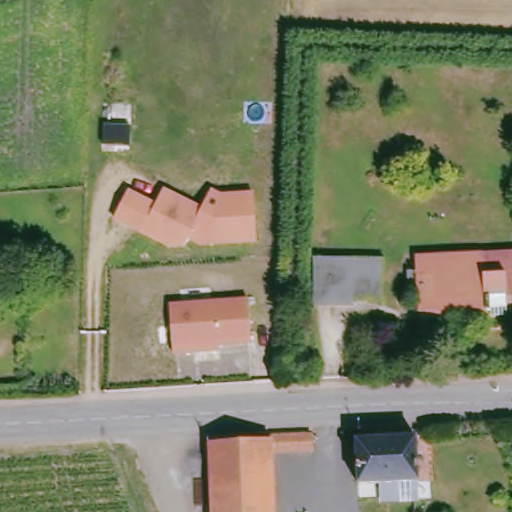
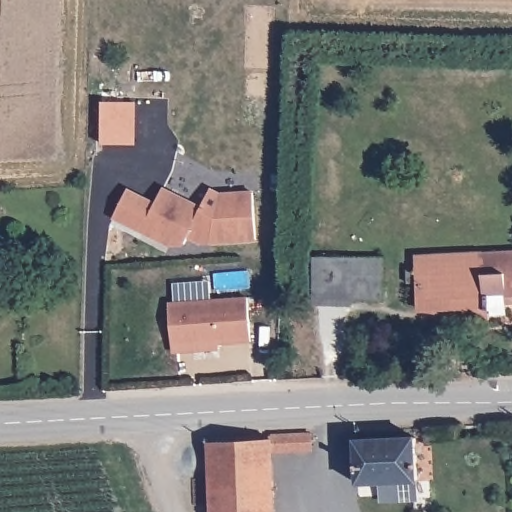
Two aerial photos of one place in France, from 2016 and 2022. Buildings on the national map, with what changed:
new [(134,103),(133,144),(100,145),(100,102),(134,103)]
unchanged [(127,186),(156,197),(162,184),(201,202),(210,185),(221,191),(251,188),(255,238),(210,241),(200,241),(186,236),(184,244),(169,244),(113,218),(127,186)]
unchanged [(411,304),(410,278),(398,279),(397,266),(410,266),(410,253),(512,251),(512,296),(496,296),(496,312),(475,313),(475,320),(411,304)]
unchanged [(379,257),(380,301),(309,301),(309,258),(379,257)]
unchanged [(168,299),(247,293),(249,340),(218,342),(218,348),(173,350),(168,299)]
unchanged [(336,440),(336,433),(339,433),(342,431),(351,430),(352,439),(336,440)]
unchanged [(276,496),(270,496),(271,512),(212,512),(209,441),(267,437),(267,434),(308,432),(308,448),(269,450),(270,482),(276,482),(276,496)]
unchanged [(376,499),(376,482),(355,483),(352,439),(411,436),(413,480),(414,498),(376,499)]

